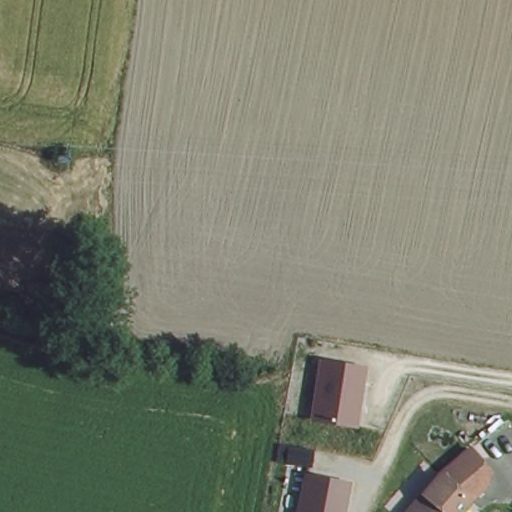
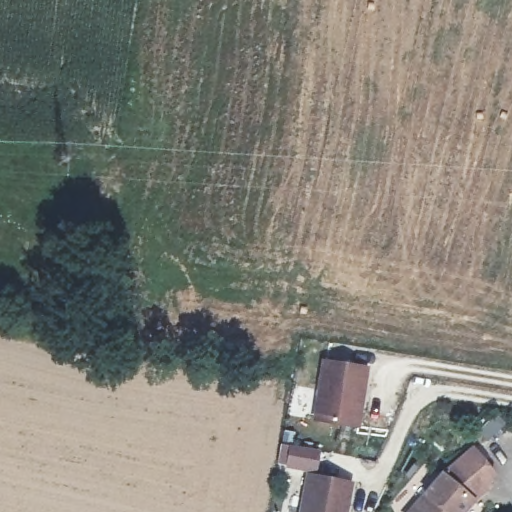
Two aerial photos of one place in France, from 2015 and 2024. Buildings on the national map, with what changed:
unchanged [(357,423),(309,415),(319,352),(371,360),(357,423)]
unchanged [(488,491),(474,500),(465,512),(411,512),(440,477),(472,450),(493,475),(488,491)]
unchanged [(351,478),(343,512),(299,512),(309,470),(351,478)]

